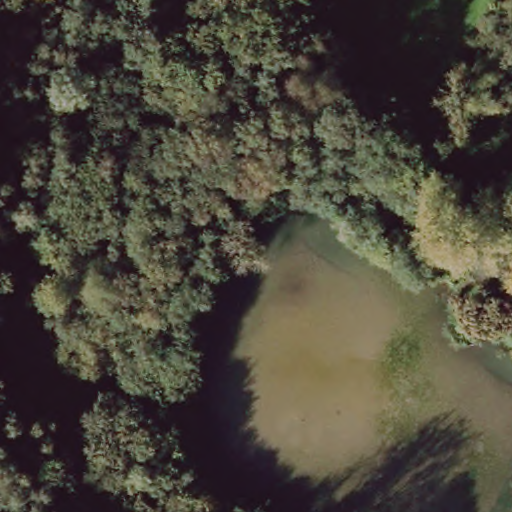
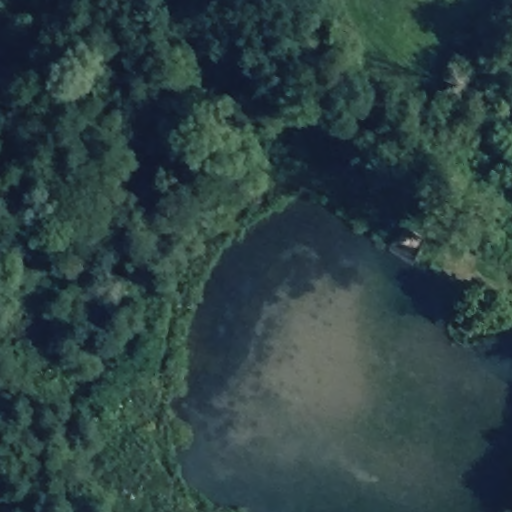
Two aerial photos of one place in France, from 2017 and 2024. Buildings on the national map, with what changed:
unchanged [(475,314),(482,320),(467,338),(457,331),(471,313),(475,314)]

